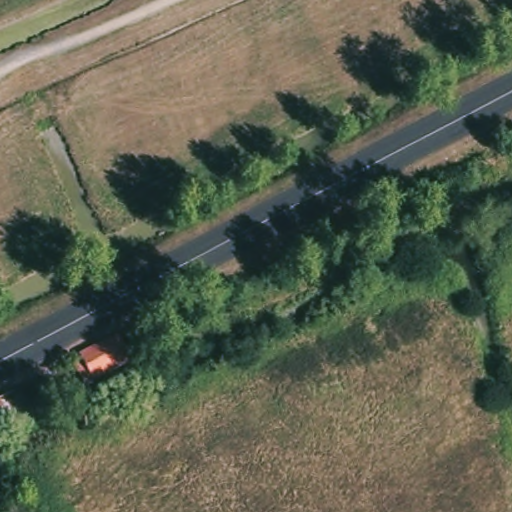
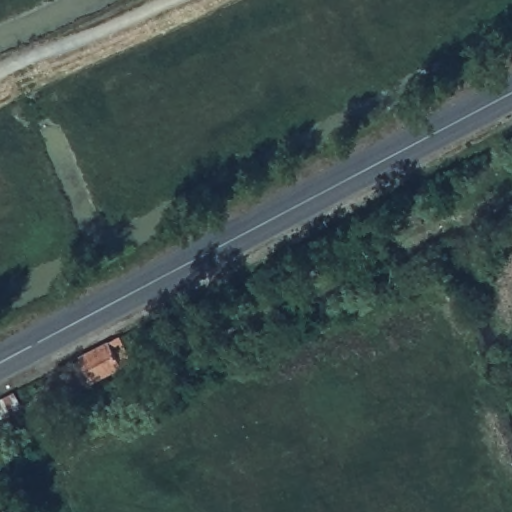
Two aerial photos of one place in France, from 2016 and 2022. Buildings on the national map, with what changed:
unchanged [(82,392),(69,368),(76,365),(75,362),(110,344),(114,342),(126,366),(88,386),(89,388),(82,392)]
unchanged [(11,414),(3,398),(26,386),(34,402),(11,414)]

